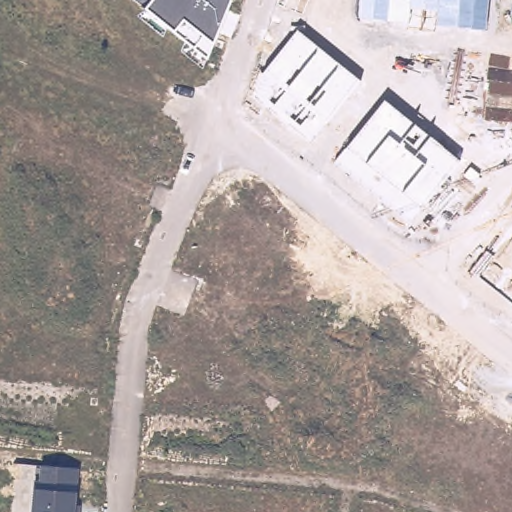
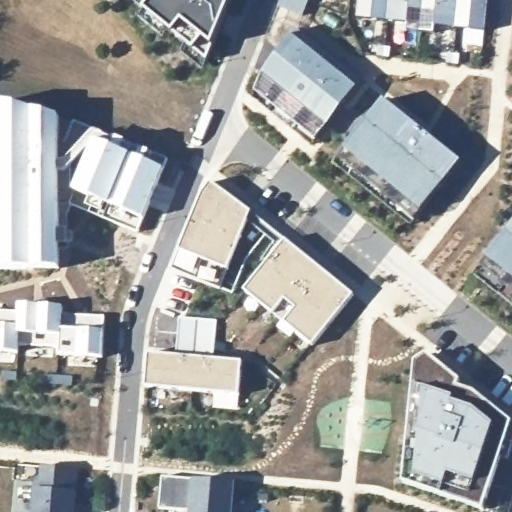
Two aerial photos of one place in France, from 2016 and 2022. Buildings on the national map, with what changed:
unchanged [(155,0),(231,0),(212,43),(207,60),(194,49),(171,30),(146,11),(155,0)]
new [(278,7),(280,0),(310,0),(303,16),(278,7)]
unchanged [(435,14),(407,11),(407,24),(360,20),(360,0),(488,0),(486,32),(435,30),(435,14)]
unchanged [(356,89),(327,125),(315,142),(256,92),(260,72),(292,36),(298,29),(362,82),(356,89)]
unchanged [(408,225),(332,164),(344,150),(384,99),(462,161),(422,210),(408,225)]
new [(56,200),(56,269),(0,269),(0,103),(72,121),(165,158),(141,219),(136,232),(102,219),(56,200)]
new [(250,214),(227,270),(220,290),(170,271),(178,253),(199,200),(211,183),(250,214)]
unchanged [(472,276),(485,260),(512,227),(512,307),(472,276)]
unchanged [(244,288),(285,238),(352,294),(312,343),(244,288)]
new [(104,358),(58,356),(58,345),(20,343),(19,354),(0,352),(0,310),(19,311),(19,305),(64,308),(63,314),(105,317),(105,332),(104,358)]
new [(142,388),(145,354),(177,356),(178,317),(215,320),(214,359),(241,361),(239,395),(142,388)]
new [(512,422),(512,424),(484,511),(403,482),(414,363),(427,354),(512,422)]
new [(79,468),(76,505),(80,505),(80,512),(32,512),(34,480),(39,480),(40,465),(79,468)]
new [(192,479),(235,483),(232,512),(183,512),(159,510),(161,476),(192,479)]

